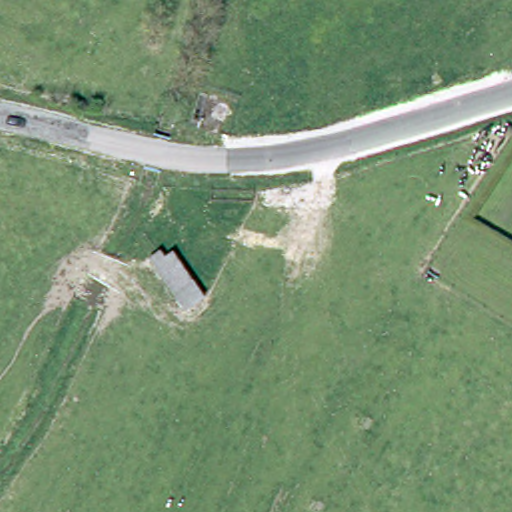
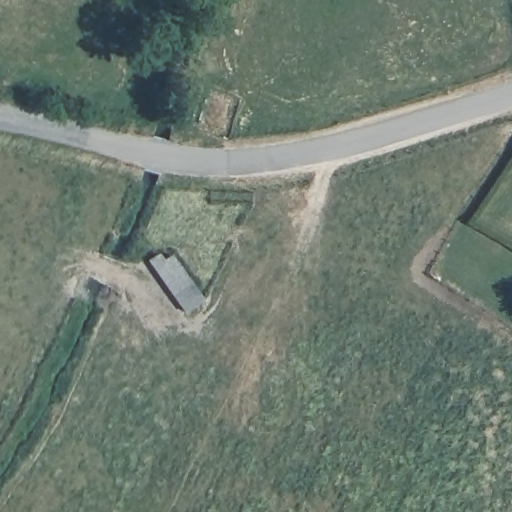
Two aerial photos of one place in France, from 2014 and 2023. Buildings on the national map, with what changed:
unchanged [(148,251),(157,245),(163,255),(172,249),(202,294),(185,305),(148,251)]

